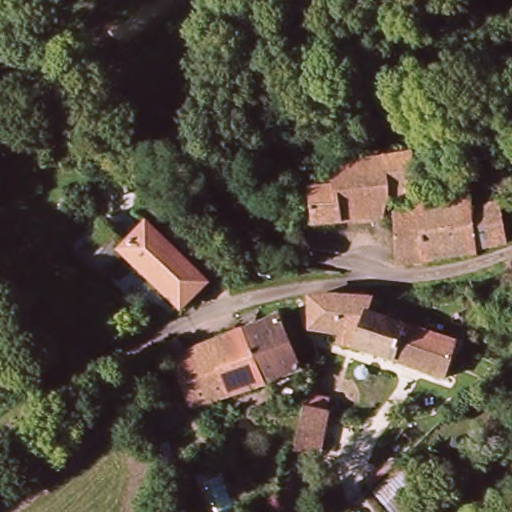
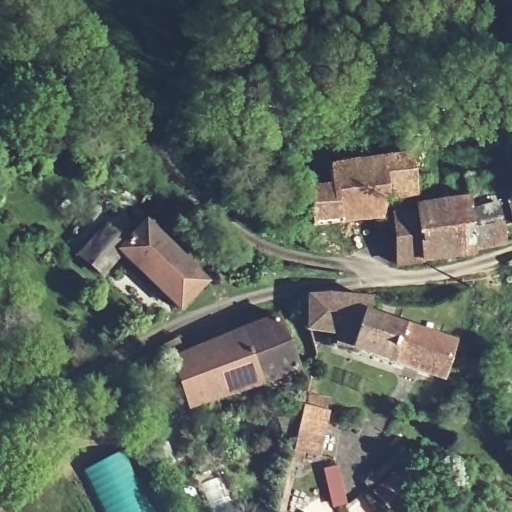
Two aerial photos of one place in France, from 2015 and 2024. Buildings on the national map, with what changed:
unchanged [(492,173),(505,170),(501,145),(512,141),(512,192),(495,195),(492,173)]
unchanged [(405,164),(411,190),(383,199),(385,217),(360,223),(307,234),(303,199),(330,196),(327,164),(402,149),(405,164)]
unchanged [(470,253),(470,261),(422,268),(416,197),(466,189),(467,205),(470,253)]
unchanged [(397,272),(397,269),(394,222),(410,206),(409,198),(416,197),(422,268),(397,272)]
unchanged [(500,250),(470,253),(467,205),(512,199),(512,227),(498,229),(500,250)]
unchanged [(128,243),(145,224),(208,278),(210,280),(184,302),(154,277),(126,253),(107,273),(83,253),(106,226),(128,243)]
demolished [(512,265),(512,273),(506,267),(512,265)]
unchanged [(341,335),(311,330),(311,303),(371,294),(368,317),(389,323),(450,340),(461,345),(461,348),(450,379),(410,364),(398,359),(386,356),(357,348),(341,346),(341,335)]
unchanged [(246,397),(199,416),(191,388),(177,358),(170,345),(179,342),(184,352),(219,341),(286,319),(307,371),(246,397)]
unchanged [(21,331),(55,351),(36,383),(2,364),(21,331)]
unchanged [(326,423),(322,448),(320,455),(296,449),(307,406),(328,411),(326,423)]
new [(85,471),(126,450),(157,512),(107,512),(85,471)]
unchanged [(432,485),(403,512),(385,512),(373,491),(410,459),(432,485)]

